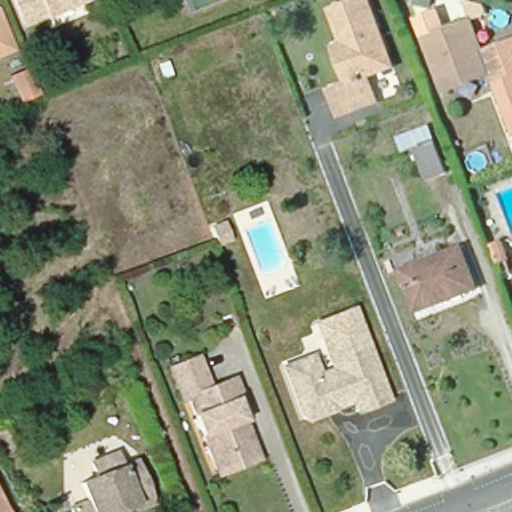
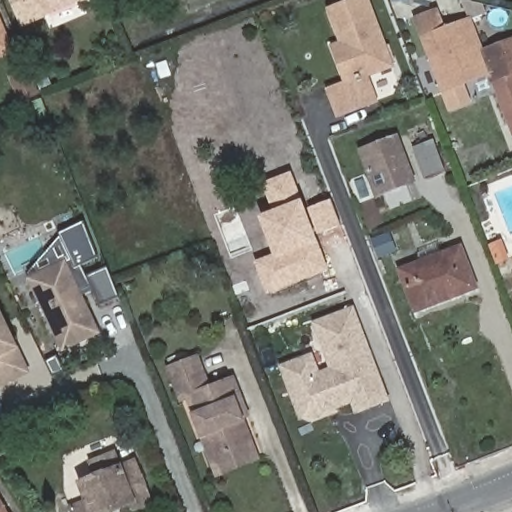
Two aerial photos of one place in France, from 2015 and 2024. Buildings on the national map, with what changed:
unchanged [(11,0),(89,0),(22,27),(11,0)]
unchanged [(391,69),(366,80),(376,105),(338,120),(328,93),(346,86),(337,63),(331,49),(340,47),(328,15),(364,1),(391,69)]
unchanged [(471,76),(469,73),(460,76),(461,79),(443,87),(415,18),(439,8),(445,24),(468,17),(481,52),(488,70),(471,76)]
unchanged [(0,51),(0,39),(4,49),(0,51)]
unchanged [(492,81),(488,70),(481,52),(512,41),(512,73),(492,81)]
new [(492,81),(512,73),(512,136),(492,81)]
new [(417,182),(377,197),(359,149),(399,133),(417,182)]
unchanged [(429,138),(441,171),(422,178),(409,146),(429,138)]
new [(273,255),(259,217),(274,211),(262,182),(291,172),(303,200),(306,209),(332,199),(341,226),(316,236),(319,242),(330,270),(268,294),(255,262),(273,255)]
unchanged [(208,225),(219,220),(227,238),(214,245),(208,225)]
new [(63,353),(27,278),(59,239),(58,233),(79,225),(94,257),(78,266),(84,277),(103,269),(114,299),(98,307),(90,293),(82,296),(99,337),(63,353)]
unchanged [(474,286),(417,308),(402,269),(423,261),(419,253),(438,246),(442,254),(459,247),(474,286)]
new [(0,307),(1,309),(19,347),(31,372),(0,386),(0,307)]
unchanged [(357,315),(391,405),(362,416),(358,405),(313,420),(304,418),(287,372),(312,363),(318,378),(322,380),(337,374),(320,329),(357,315)]
unchanged [(261,462),(214,479),(185,399),(177,402),(164,369),(198,357),(208,386),(230,378),(261,462)]
unchanged [(11,447),(0,453),(0,432),(3,430),(11,447)]
unchanged [(65,506),(82,499),(74,481),(90,474),(84,460),(109,450),(114,464),(129,458),(146,499),(130,505),(128,501),(102,512),(68,512),(65,506)]
unchanged [(0,511),(1,512),(0,512),(0,511)]

